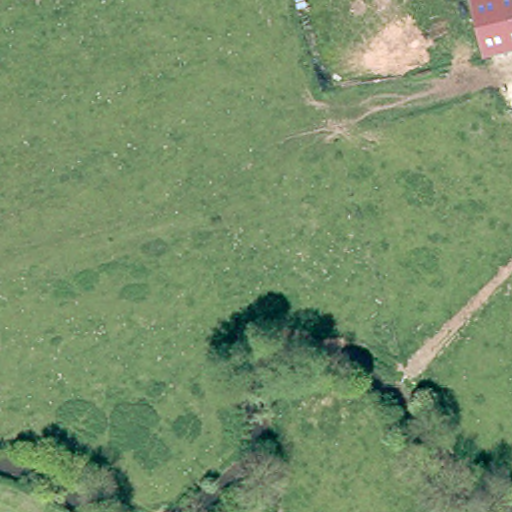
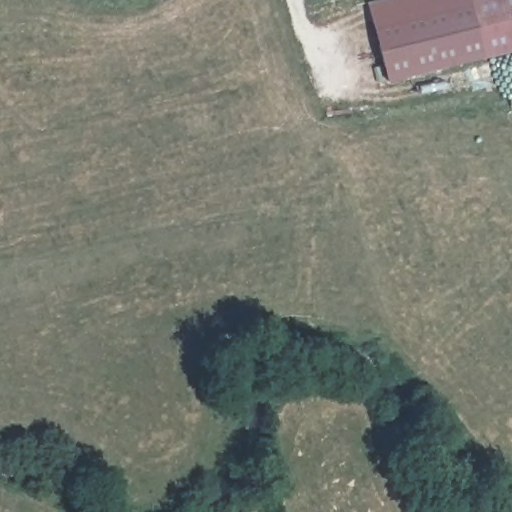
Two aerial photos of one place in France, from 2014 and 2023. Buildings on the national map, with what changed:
new [(490,51),(390,75),(370,1),(374,0),(476,0),(490,51)]
unchanged [(476,0),(512,0),(512,46),(490,51),(476,0)]

